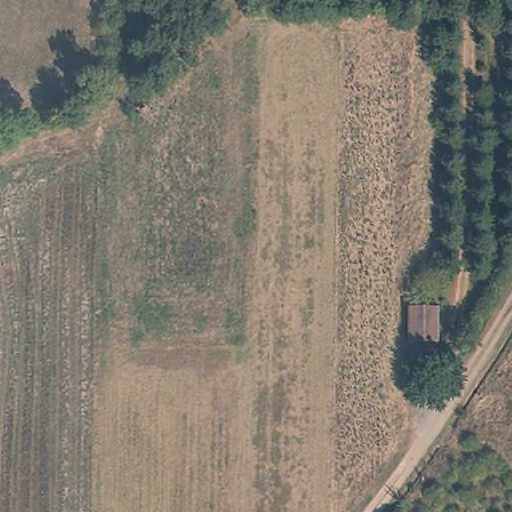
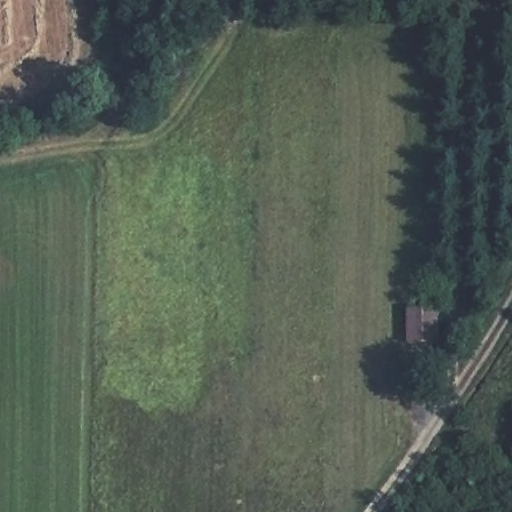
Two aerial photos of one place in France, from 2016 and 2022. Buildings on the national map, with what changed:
unchanged [(77,88),(82,87),(87,89),(89,95),(87,99),(81,101),(76,99),(76,98),(75,92),(77,88)]
unchanged [(409,308),(437,309),(436,345),(408,345),(409,308)]

